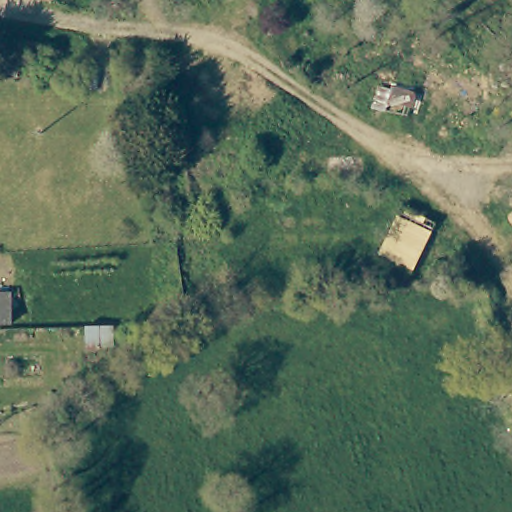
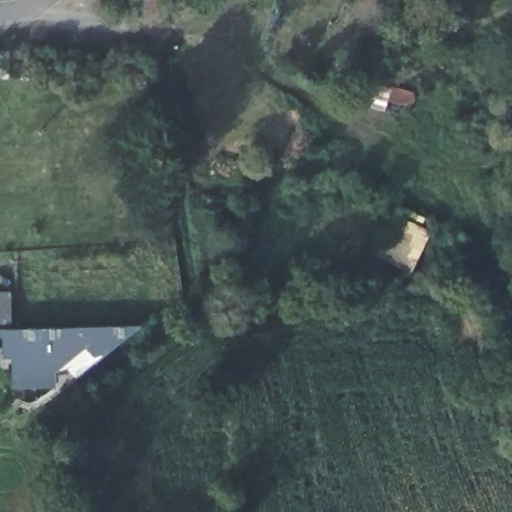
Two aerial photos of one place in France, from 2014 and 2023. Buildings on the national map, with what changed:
unchanged [(374,254),(398,203),(438,223),(411,273),(374,254)]
unchanged [(9,318),(0,319),(0,289),(6,288),(9,318)]
demolished [(84,347),(85,324),(114,323),(114,348),(84,347)]
new [(142,325),(96,361),(89,351),(80,351),(53,373),(54,388),(11,387),(11,358),(2,358),(2,337),(0,337),(0,327),(1,327),(142,325)]
new [(0,452),(29,451),(30,492),(0,493),(0,452)]

